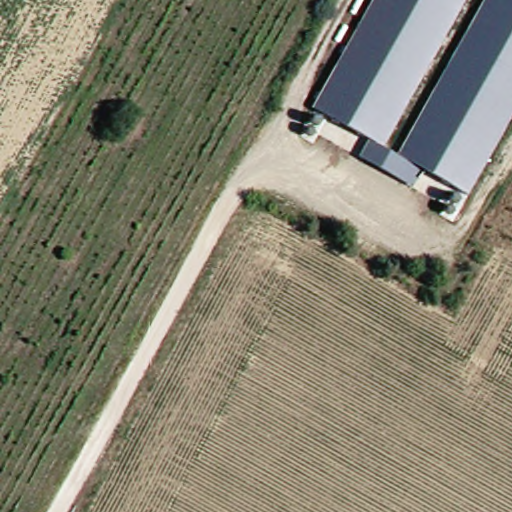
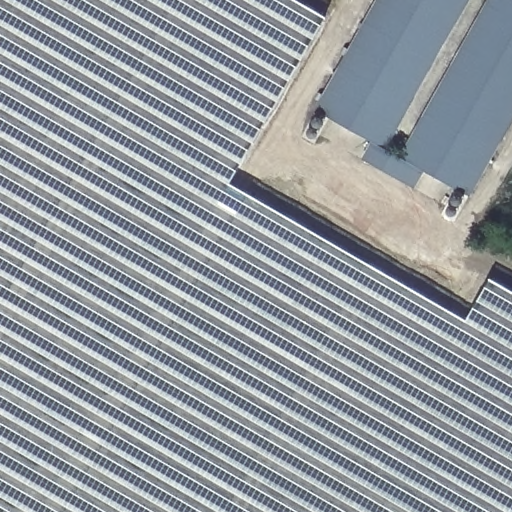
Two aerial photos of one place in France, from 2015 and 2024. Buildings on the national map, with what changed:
new [(326,16),(230,182),(466,319),(490,278),(512,291),(512,512),(0,512),(0,0),(299,0),(326,16)]
unchanged [(401,185),(361,163),(371,145),(314,114),(377,0),(466,0),(382,151),(399,161),(489,0),(512,0),(512,118),(467,199),(421,173),(411,191),(401,185)]

